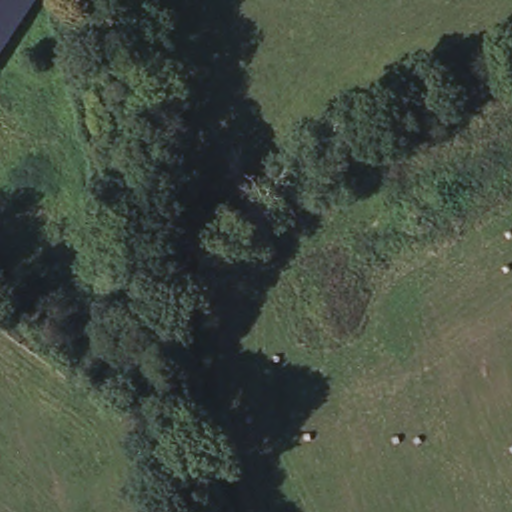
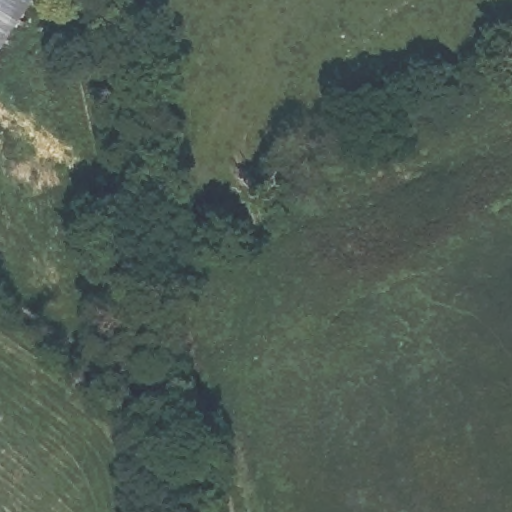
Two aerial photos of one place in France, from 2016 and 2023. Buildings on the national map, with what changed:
unchanged [(0,0),(35,0),(0,55),(0,0)]

